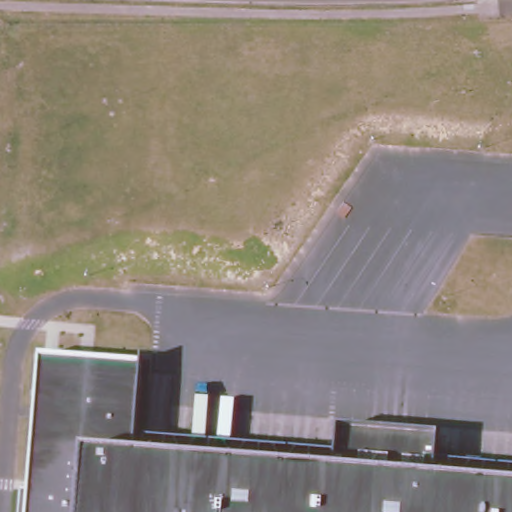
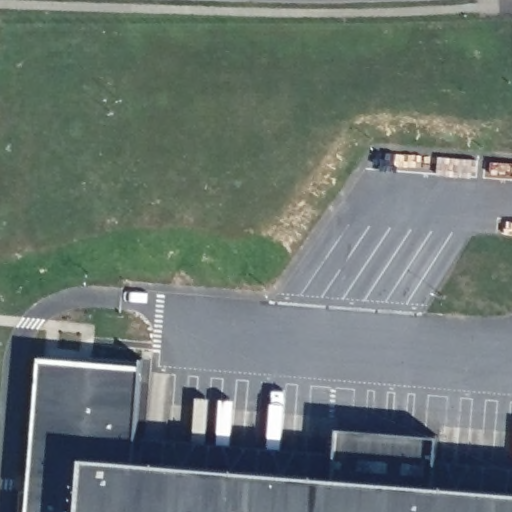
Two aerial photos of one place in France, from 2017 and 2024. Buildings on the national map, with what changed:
unchanged [(19,493),(27,494),(40,359),(140,364),(131,465),(512,495),(512,512),(17,512),(19,493)]

